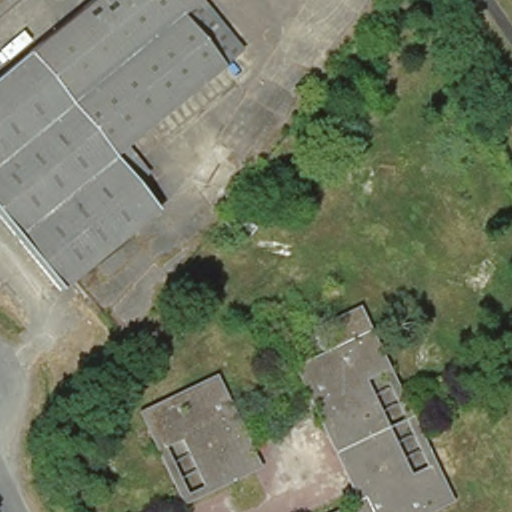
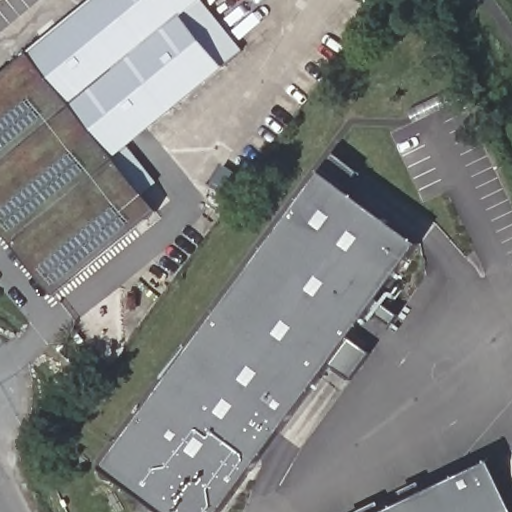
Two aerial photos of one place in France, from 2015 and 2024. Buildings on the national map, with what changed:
unchanged [(93,0),(202,0),(243,51),(113,159),(155,211),(59,290),(0,217),(0,76),(93,0)]
unchanged [(371,52),(362,63),(349,53),(358,41),(371,52)]
new [(357,172),(344,188),(419,242),(378,297),(398,314),(392,323),(370,308),(349,337),(369,352),(352,378),(330,363),(221,512),(163,512),(101,466),(322,172),(335,154),(357,172)]
demolished [(311,330),(302,312),(343,292),(351,310),(381,372),(364,381),(359,372),(354,375),(358,383),(403,477),(407,485),(413,482),(409,475),(426,467),(442,499),(415,512),(350,512),(371,502),(367,495),(353,464),(348,466),(332,432),(336,430),(319,393),(314,396),(302,371),(325,360),(322,353),(314,336),(311,330)]
demolished [(184,430),(178,433),(182,441),(163,451),(148,417),(212,386),(224,409),(219,412),(240,457),(246,456),(253,471),(213,491),(188,438),(184,430)]
new [(512,507),(512,512),(382,512),(490,461),(512,507)]

